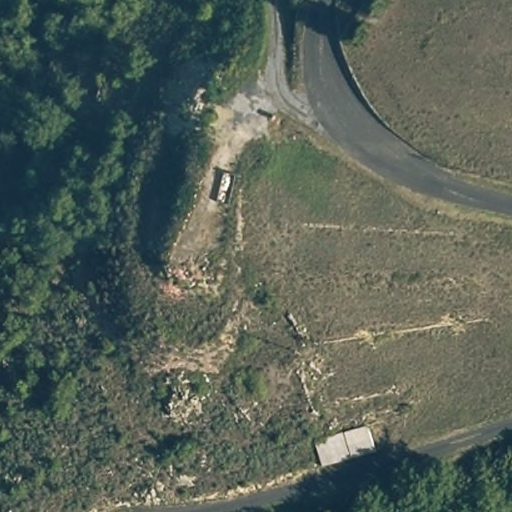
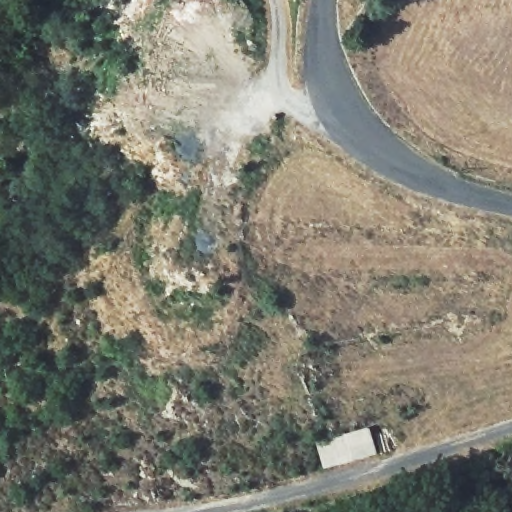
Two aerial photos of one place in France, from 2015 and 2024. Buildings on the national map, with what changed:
unchanged [(321,442),(370,427),(378,457),(325,470),(321,442)]

